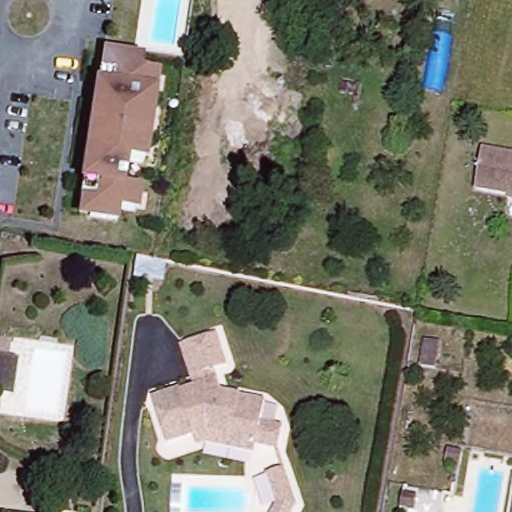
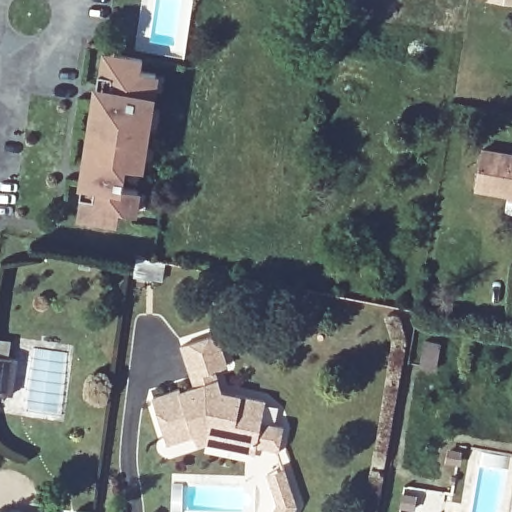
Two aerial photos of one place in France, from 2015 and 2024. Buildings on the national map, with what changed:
new [(485,0),(486,0),(512,0),(512,5),(485,0)]
unchanged [(70,196),(77,152),(80,152),(85,116),(82,115),(89,72),(90,72),(94,56),(105,58),(105,54),(133,59),(131,70),(147,72),(133,165),(117,163),(114,187),(129,189),(125,212),(110,210),(109,221),(80,217),(81,214),(70,212),(73,196),(70,196)]
unchanged [(476,191),(482,151),(512,156),(512,197),(476,191)]
unchanged [(209,442),(210,430),(171,441),(156,397),(180,388),(183,392),(197,386),(182,347),(217,333),(230,363),(215,369),(225,391),(265,396),(263,420),(283,424),(280,446),(256,442),(255,449),(209,442)]
unchanged [(0,386),(0,346),(9,348),(4,386),(0,386)]
unchanged [(294,512),(276,512),(278,505),(271,477),(286,472),(297,504),(294,512)]

